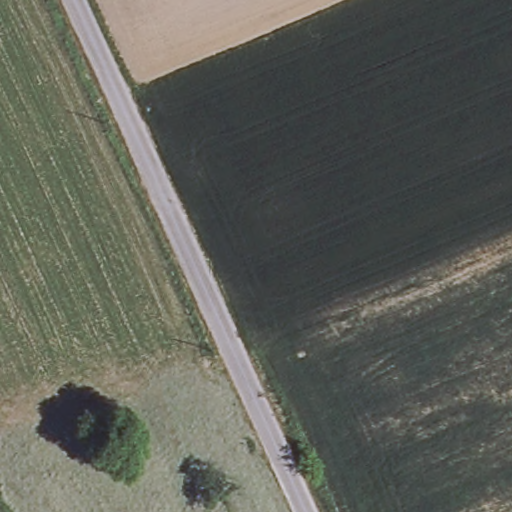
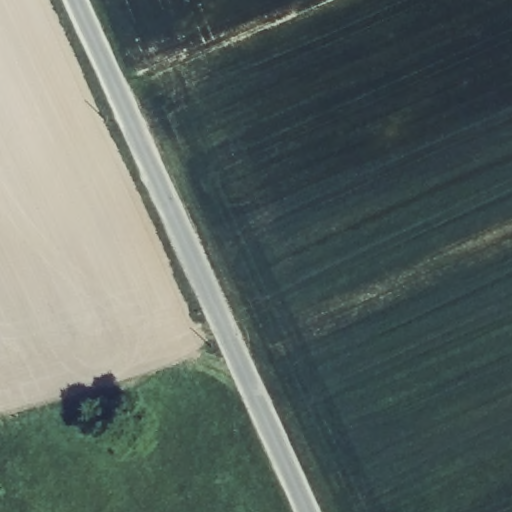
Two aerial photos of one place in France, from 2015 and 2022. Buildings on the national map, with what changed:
[]

